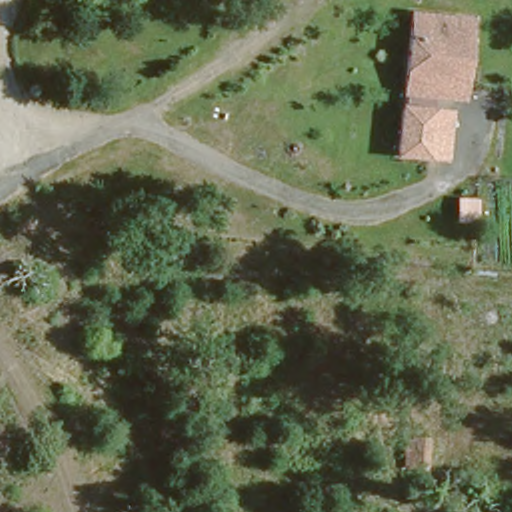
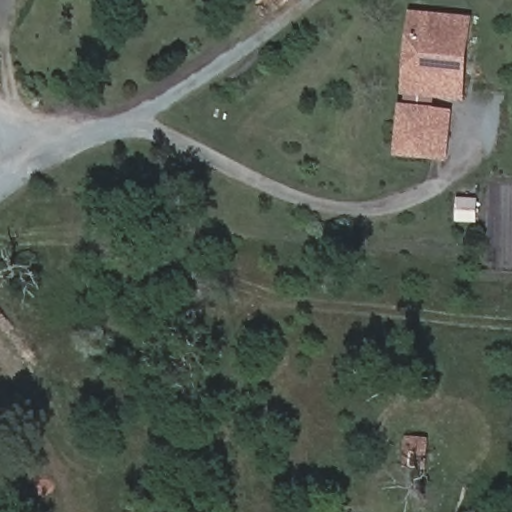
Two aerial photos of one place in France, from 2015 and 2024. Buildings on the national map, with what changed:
unchanged [(414,13),(461,16),(458,92),(426,90),(425,111),(406,111),(414,13)]
unchanged [(379,153),(381,109),(406,111),(425,111),(424,156),(379,153)]
unchanged [(443,436),(438,466),(420,464),(424,434),(443,436)]

